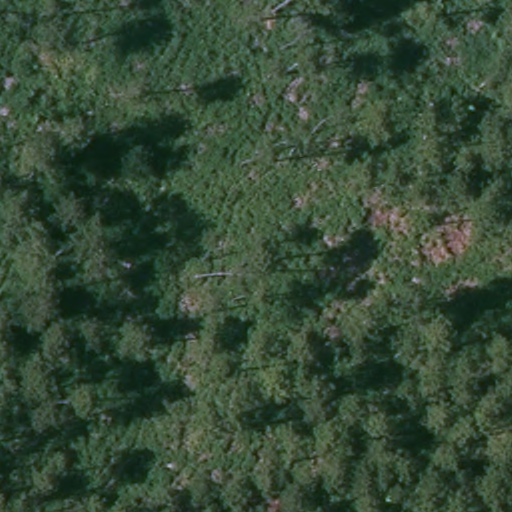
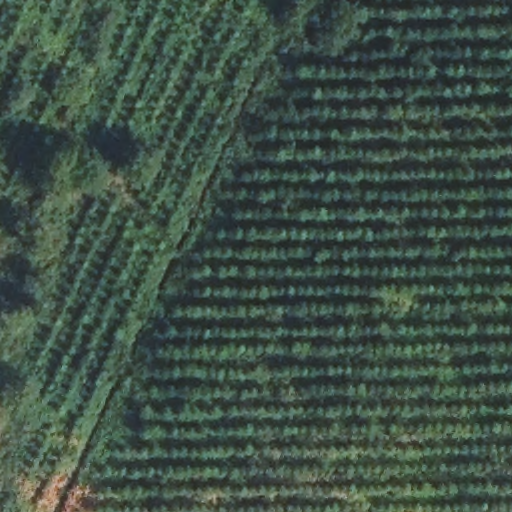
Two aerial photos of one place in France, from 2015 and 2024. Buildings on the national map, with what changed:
[]

